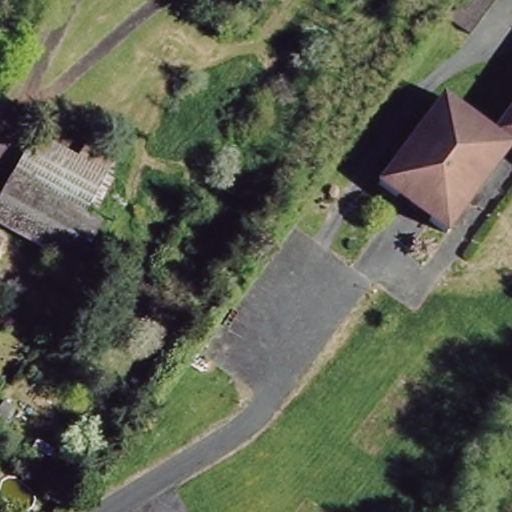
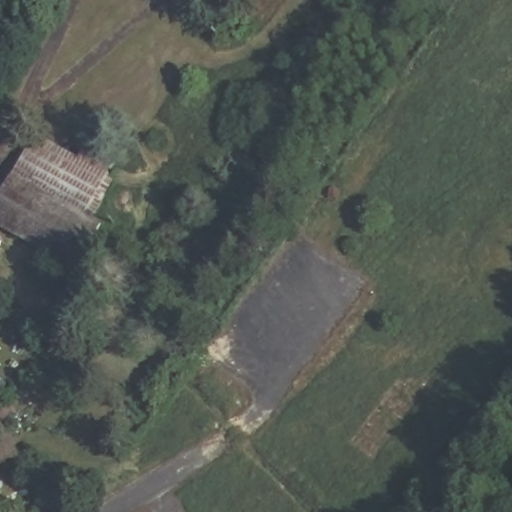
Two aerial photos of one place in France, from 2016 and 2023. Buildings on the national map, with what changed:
demolished [(451,13),(460,0),(494,0),(473,30),(451,13)]
demolished [(509,145),(486,177),(480,173),(461,200),(467,203),(445,233),(426,218),(429,214),(398,191),(394,197),(375,182),(395,154),(396,154),(401,158),(420,130),(415,127),(437,96),(457,110),(452,116),(484,140),(491,131),(509,145)]
demolished [(512,104),(512,140),(509,145),(491,131),(512,104)]
unchanged [(35,135),(72,156),(79,144),(111,162),(104,175),(81,212),(10,174),(35,135)]
unchanged [(98,221),(73,265),(4,227),(0,226),(0,192),(10,174),(81,212),(98,221)]

